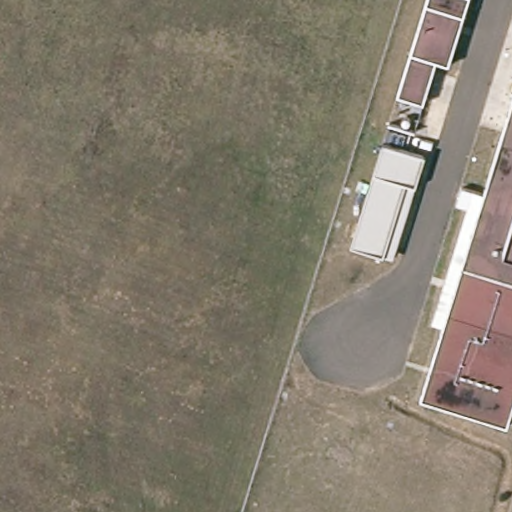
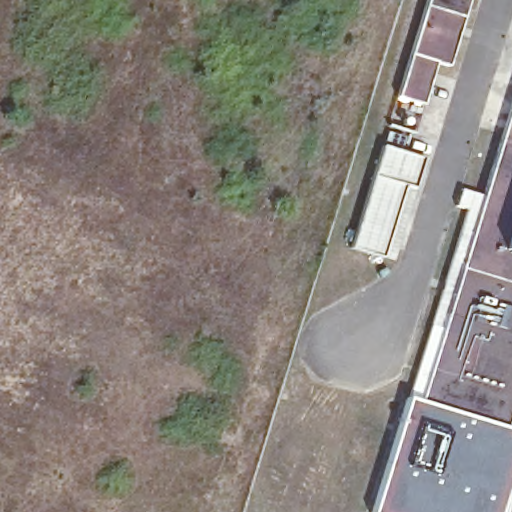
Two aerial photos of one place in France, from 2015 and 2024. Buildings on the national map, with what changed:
unchanged [(448,68),(438,65),(425,108),(397,99),(427,0),(469,0),(448,68)]
unchanged [(421,403),(512,104),(512,416),(508,429),(421,403)]
unchanged [(383,259),(351,249),(382,146),(424,159),(415,189),(393,262),(383,259)]
new [(421,403),(508,429),(512,430),(512,472),(500,512),(371,512),(405,397),(421,403)]

